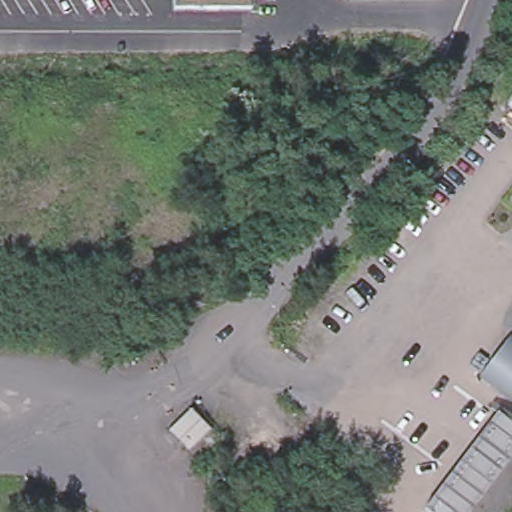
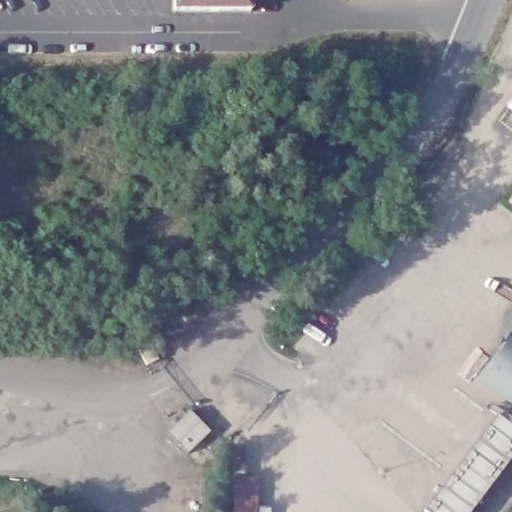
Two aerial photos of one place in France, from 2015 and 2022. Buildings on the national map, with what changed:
unchanged [(249,11),(173,11),(174,0),(249,0),(249,11)]
unchanged [(512,95),(512,111),(505,105),(512,95)]
unchanged [(512,194),(512,209),(505,204),(512,194)]
unchanged [(512,340),(512,398),(481,376),(509,337),(512,340)]
unchanged [(210,432),(186,454),(166,432),(189,410),(210,432)]
unchanged [(512,432),(512,454),(467,512),(423,512),(494,418),(512,432)]

